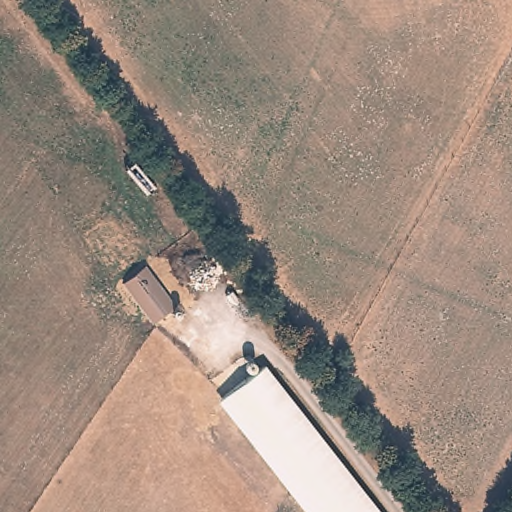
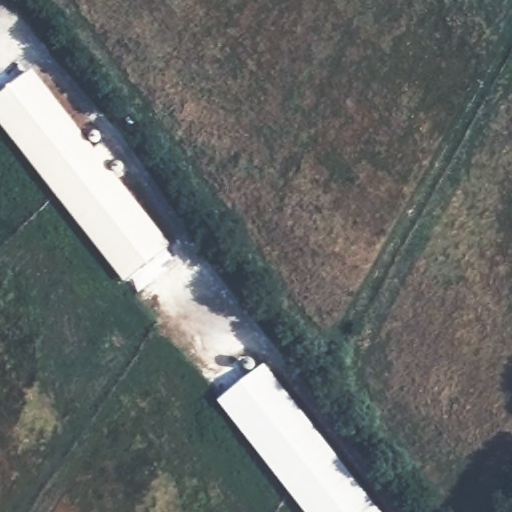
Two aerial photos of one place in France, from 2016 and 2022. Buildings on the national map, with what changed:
new [(20,75),(84,153),(96,144),(110,162),(99,172),(162,251),(126,280),(0,123),(0,91),(20,75)]
unchanged [(255,374),(366,512),(307,512),(219,403),(255,374)]

